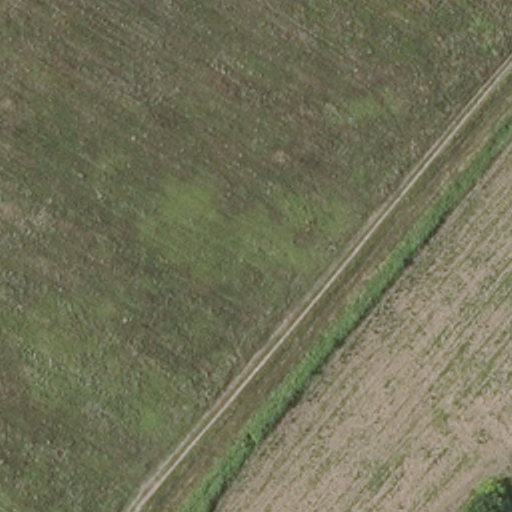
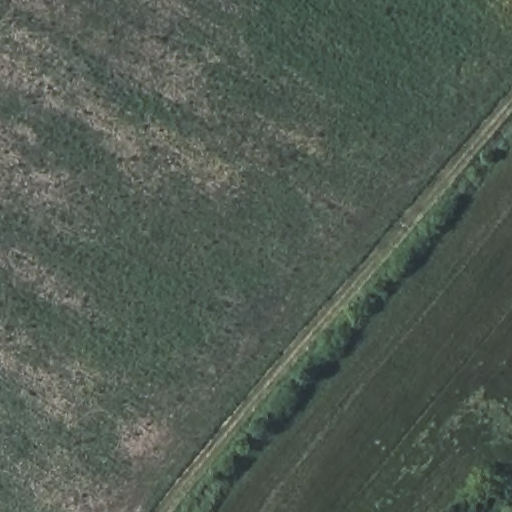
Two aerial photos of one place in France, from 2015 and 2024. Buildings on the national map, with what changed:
[]

